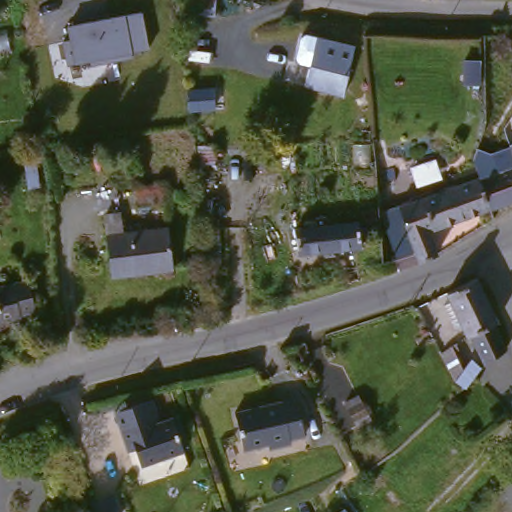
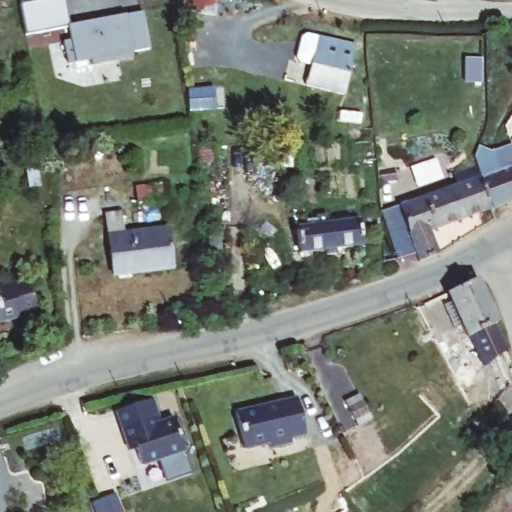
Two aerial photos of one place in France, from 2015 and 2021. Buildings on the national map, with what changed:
new [(25,34),(19,0),(63,0),(68,25),(66,25),(25,34)]
unchanged [(147,47),(68,63),(62,39),(70,38),(66,25),(140,12),(147,47)]
unchanged [(353,39),(352,88),(315,87),(315,65),(316,39),(324,40),(324,39),(353,39)]
unchanged [(453,170),(471,163),(472,146),(483,142),(488,139),(500,148),(512,143),(512,202),(490,210),(491,215),(432,239),(438,259),(419,268),(400,205),(459,187),(453,170)]
unchanged [(113,215),(129,214),(131,235),(175,230),(180,268),(120,274),(113,215)]
unchanged [(314,229),(313,217),(334,214),(335,227),(365,224),(367,249),(310,256),(307,229),(314,229)]
unchanged [(512,351),(503,355),(490,326),(481,329),(471,307),(461,309),(450,284),(489,264),(511,314),(509,318),(512,326),(512,351)]
unchanged [(19,283),(35,281),(40,318),(24,319),(25,322),(0,326),(0,287),(19,283)]
unchanged [(498,361),(480,384),(462,366),(451,342),(466,335),(480,359),(487,352),(498,361)]
unchanged [(349,401),(362,395),(372,418),(360,425),(349,401)]
unchanged [(235,414),(291,398),(303,431),(292,434),(292,440),(270,448),(267,444),(245,449),(235,414)]
unchanged [(186,445),(146,464),(135,446),(124,448),(119,431),(172,417),(186,445)]

